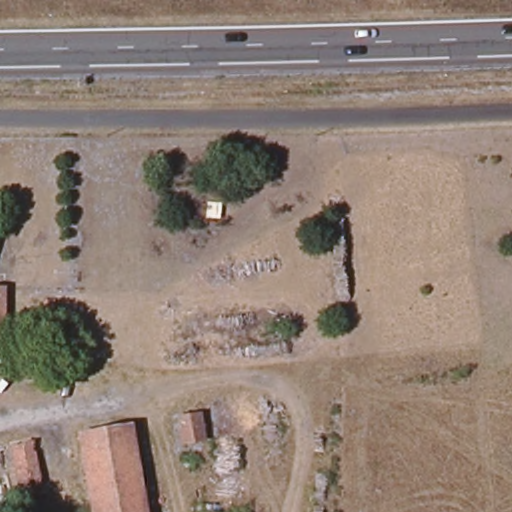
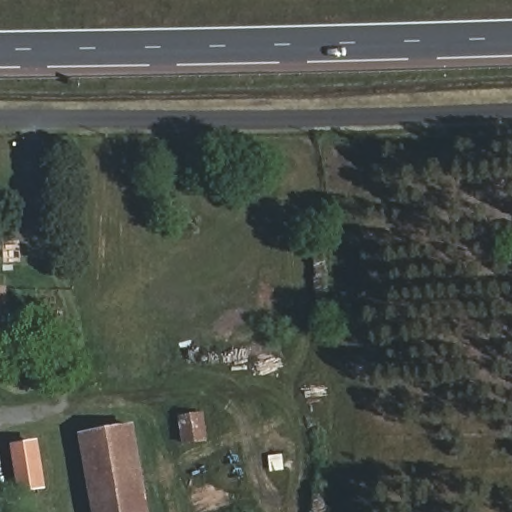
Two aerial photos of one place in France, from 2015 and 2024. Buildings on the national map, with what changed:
unchanged [(8,361),(0,361),(0,287),(9,287),(8,361)]
unchanged [(181,418),(202,415),(207,442),(185,445),(181,418)]
unchanged [(100,430),(131,425),(148,512),(92,512),(78,434),(100,430)]
unchanged [(9,447),(30,444),(38,490),(18,493),(9,447)]

